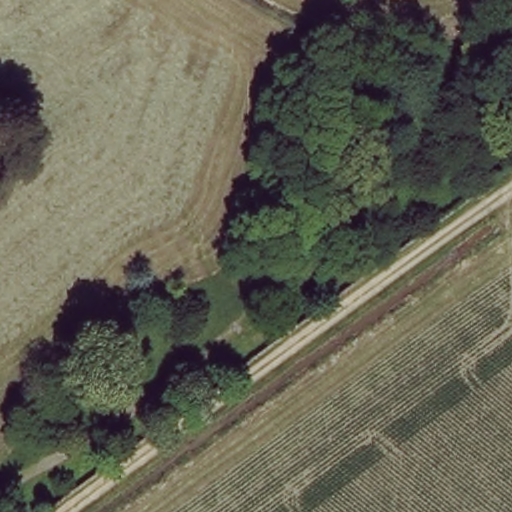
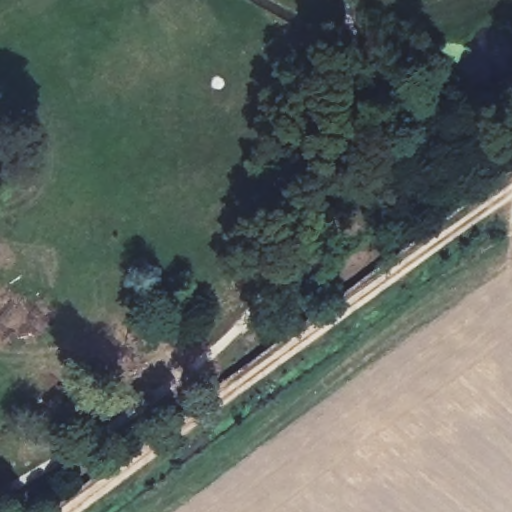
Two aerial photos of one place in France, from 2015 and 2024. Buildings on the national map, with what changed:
[]

